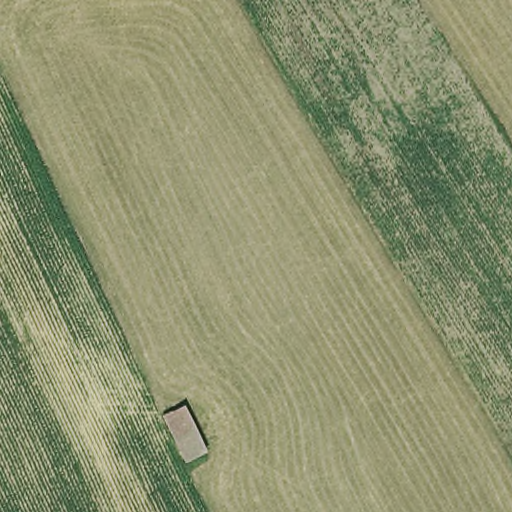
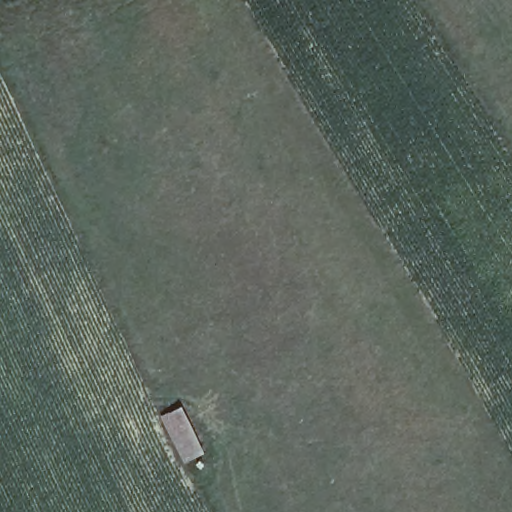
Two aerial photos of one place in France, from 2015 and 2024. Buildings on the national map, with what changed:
unchanged [(165,421),(184,409),(210,458),(188,464),(165,421)]

